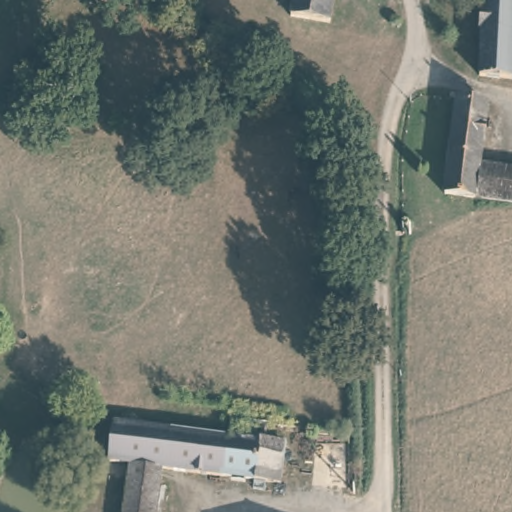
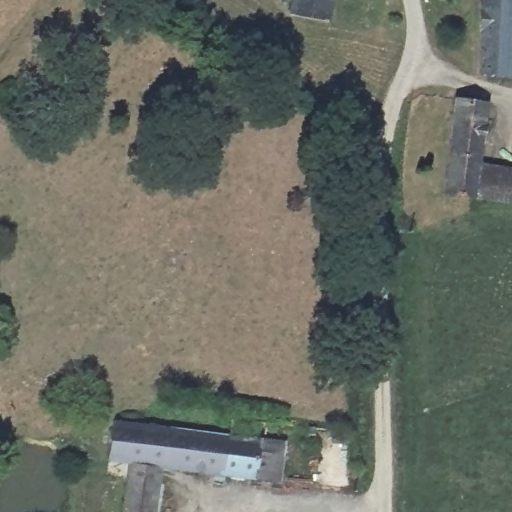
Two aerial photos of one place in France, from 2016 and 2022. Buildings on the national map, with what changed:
unchanged [(292,12),(294,0),(336,0),(332,19),(292,12)]
unchanged [(486,0),(512,0),(512,75),(481,73),(486,0)]
unchanged [(460,98),(492,102),(484,164),(480,196),(447,191),(460,98)]
unchanged [(484,164),(512,168),(512,200),(480,196),(484,164)]
unchanged [(269,435),(287,437),(282,479),(167,465),(134,460),(113,458),(117,419),(231,432),(233,415),(271,419),(269,435)]
unchanged [(160,512),(126,512),(134,460),(167,465),(160,512)]

